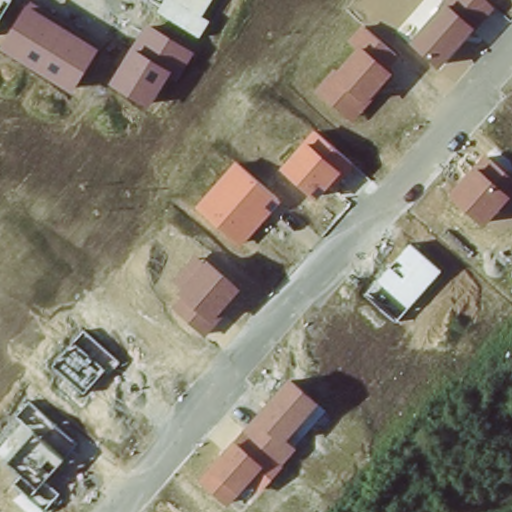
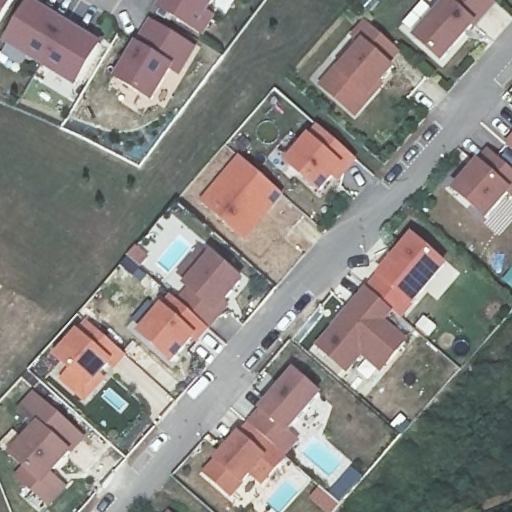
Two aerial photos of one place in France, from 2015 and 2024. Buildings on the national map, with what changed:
unchanged [(0,0),(13,0),(0,22),(0,0)]
unchanged [(214,18),(204,36),(160,10),(166,0),(214,0),(207,13),(214,18)]
unchanged [(475,33),(473,31),(443,66),(412,39),(445,2),(447,0),(491,0),(497,6),(475,33)]
unchanged [(75,89),(5,46),(30,2),(103,45),(75,89)]
unchanged [(197,50),(181,77),(174,72),(155,102),(116,80),(150,22),(197,50)]
unchanged [(391,64),(396,69),(371,98),(355,117),(318,87),(336,66),(340,70),(361,46),(350,37),(365,22),(399,52),(391,64)]
unchanged [(355,160),(323,197),(284,165),(317,127),(355,160)]
new [(512,142),(512,153),(507,148),(512,142)]
unchanged [(488,221),(451,190),(487,147),(512,170),(512,180),(507,185),(512,190),(512,193),(488,221)]
unchanged [(246,240),(202,201),(238,158),(284,197),(246,240)]
unchanged [(400,318),(367,288),(412,240),(445,266),(400,318)]
unchanged [(226,307),(229,310),(211,331),(177,301),(188,287),(178,277),(203,247),(246,282),(226,307)]
new [(394,313),(385,322),(409,342),(380,375),(362,357),(346,375),(315,346),(367,288),(394,313)]
new [(161,306),(171,296),(177,301),(211,331),(198,344),(195,340),(172,367),(138,335),(161,306)]
unchanged [(126,357),(113,372),(108,367),(91,387),(58,359),(90,325),(126,357)]
unchanged [(293,431),(303,441),(264,487),(253,478),(233,502),(202,475),(294,372),(322,397),(293,431)]
unchanged [(84,437),(52,475),(65,487),(50,506),(19,478),(26,471),(11,457),(40,425),(19,409),(37,396),(84,437)]
unchanged [(169,511),(170,512),(168,512),(169,511)]

